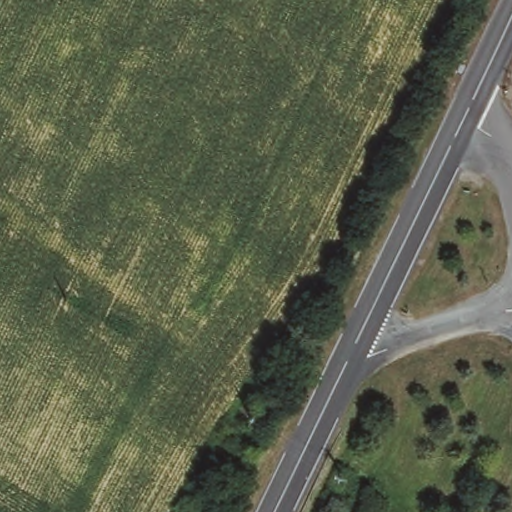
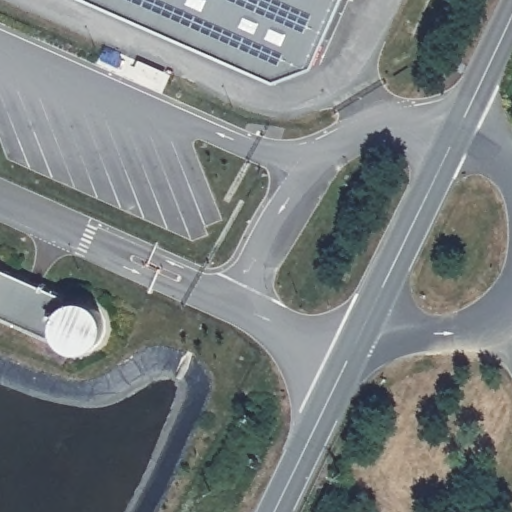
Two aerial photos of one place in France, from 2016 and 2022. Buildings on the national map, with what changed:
new [(278,76),(105,0),(346,0),(318,62),(278,76)]
new [(7,275),(11,267),(78,297),(74,306),(81,302),(88,301),(97,302),(103,305),(109,310),(113,317),(115,325),(114,333),(112,338),(109,343),(105,347),(100,350),(92,352),(83,352),(75,347),(70,343),(66,337),(64,330),(60,338),(0,312),(0,257),(5,266),(7,275)]

